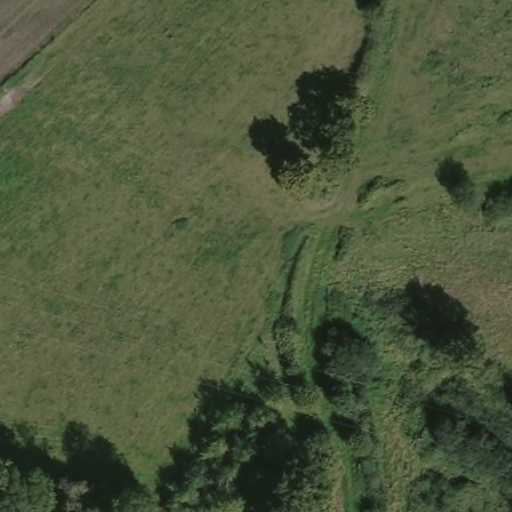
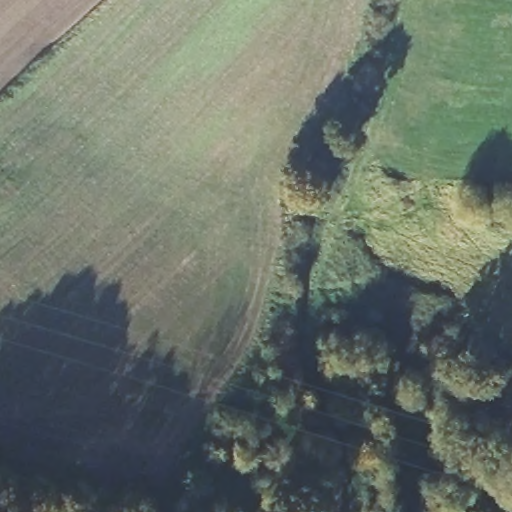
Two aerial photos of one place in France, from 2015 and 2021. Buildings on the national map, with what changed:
[]

